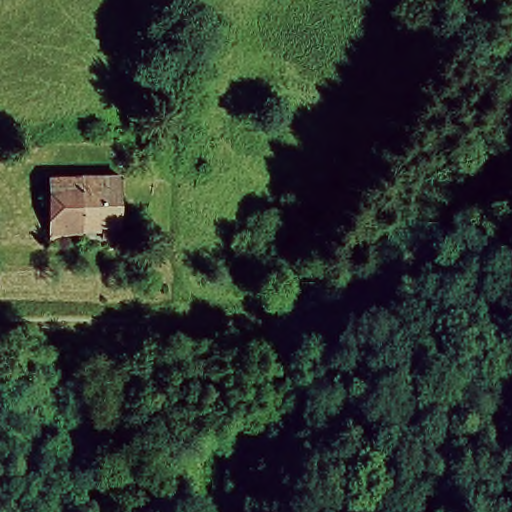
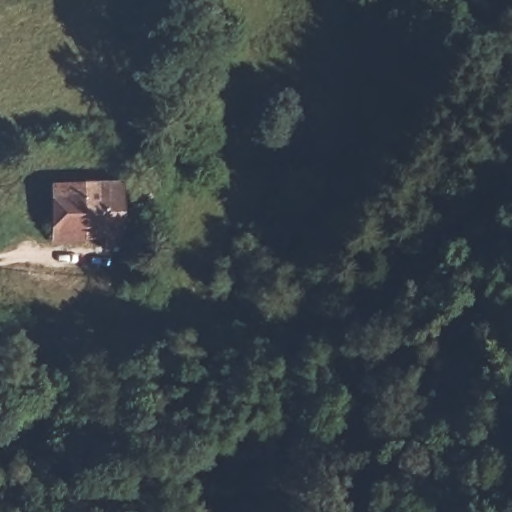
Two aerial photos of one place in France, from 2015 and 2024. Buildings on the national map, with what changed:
unchanged [(52,184),(123,182),(125,237),(53,239),(52,184)]

